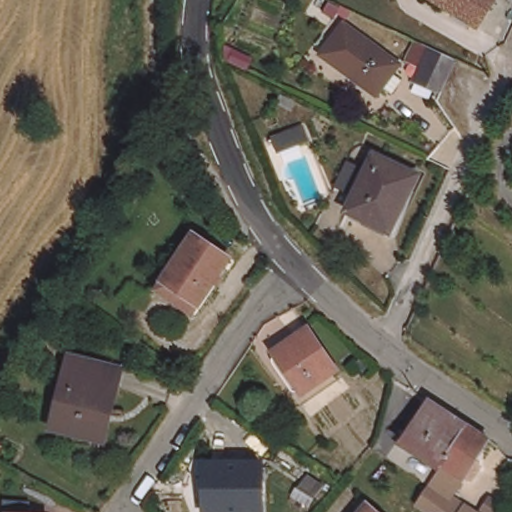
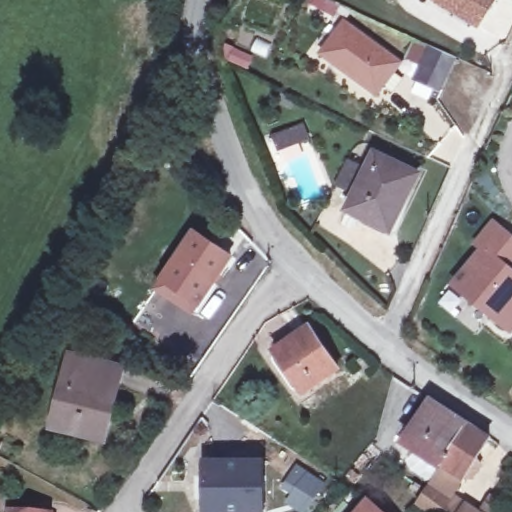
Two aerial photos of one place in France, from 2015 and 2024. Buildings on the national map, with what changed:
unchanged [(472,22),(434,0),(485,0),(472,22)]
unchanged [(352,27),(405,67),(382,99),(328,59),(352,27)]
unchanged [(444,94),(419,82),(435,47),(460,60),(444,94)]
unchanged [(380,157),(422,176),(396,231),(354,212),(380,157)]
new [(485,250),(480,245),(496,224),(512,236),(512,261),(507,267),(512,271),(512,329),(511,330),(457,286),(485,250)]
unchanged [(159,294),(165,285),(195,236),(231,258),(200,307),(195,317),(159,294)]
unchanged [(310,329),(340,372),(304,397),(275,353),(310,329)]
unchanged [(95,442),(53,431),(72,358),(122,373),(110,417),(104,443),(95,442)]
unchanged [(462,476),(444,461),(440,458),(424,447),(408,434),(435,397),(451,408),(467,422),(490,439),(462,476)]
unchanged [(0,461),(0,452),(4,454),(0,461)]
unchanged [(267,512),(206,512),(205,502),(197,501),(198,484),(205,484),(205,466),(267,466),(267,512)]
unchanged [(307,470),(324,480),(314,494),(297,483),(307,470)]
unchanged [(457,503),(450,512),(436,512),(417,497),(429,481),(457,503)]
unchanged [(377,512),(363,512),(369,505),(377,512)]

